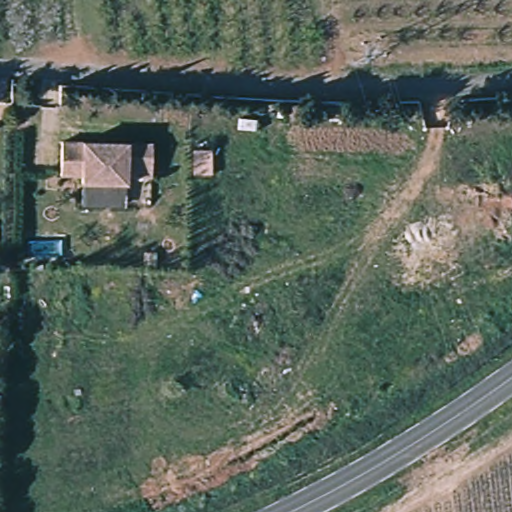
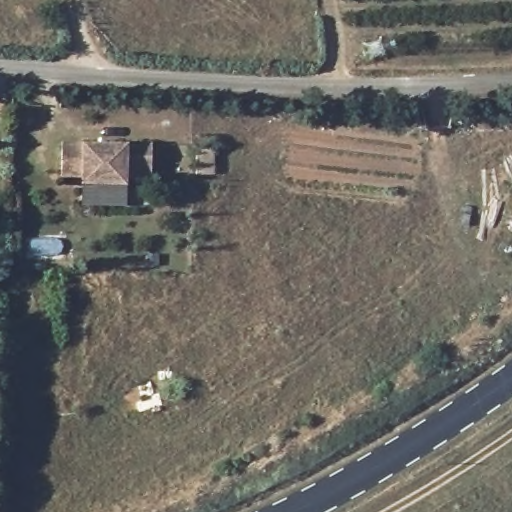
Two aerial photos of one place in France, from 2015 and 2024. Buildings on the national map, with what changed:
unchanged [(153,141),(153,172),(128,171),(128,180),(84,180),(84,172),(63,172),(63,140),(153,141)]

